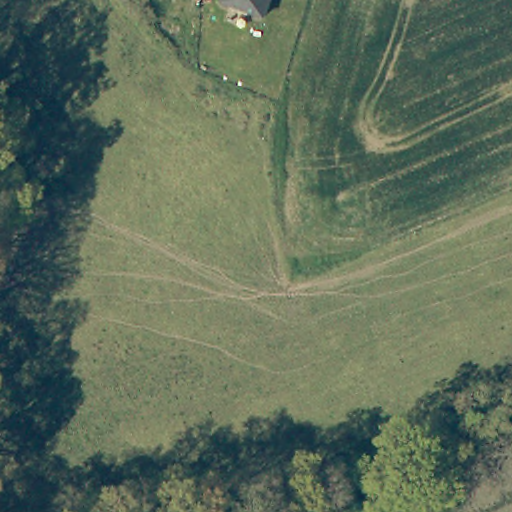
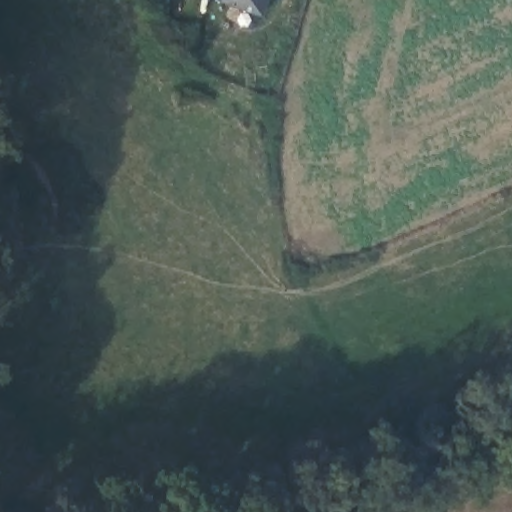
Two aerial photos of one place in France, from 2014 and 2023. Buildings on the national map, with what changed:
unchanged [(262,0),(255,17),(212,0),(262,0)]

